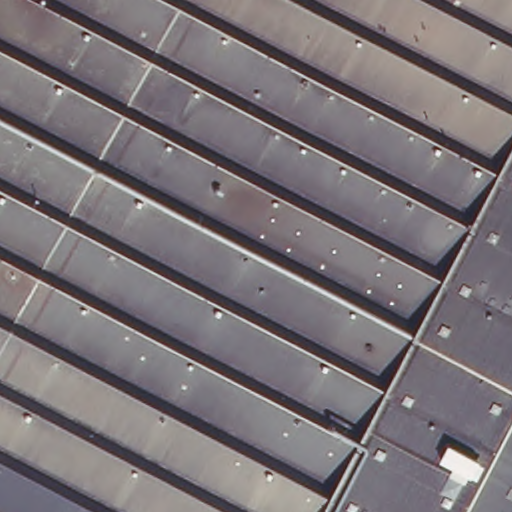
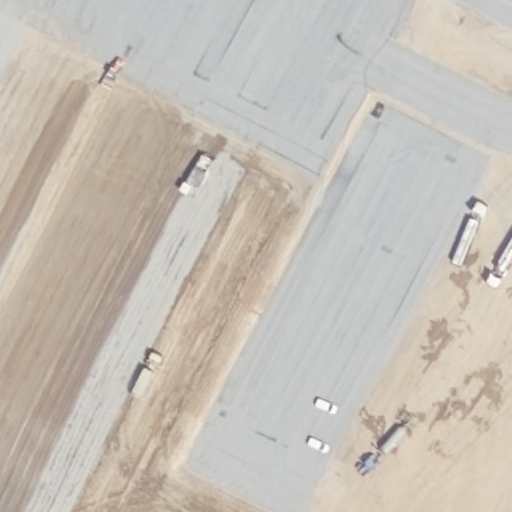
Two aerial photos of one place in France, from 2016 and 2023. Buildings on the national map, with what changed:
new [(157,512),(0,512),(0,0),(416,0),(157,512)]
demolished [(512,512),(0,512),(0,0),(512,0),(512,512)]
new [(512,26),(461,0),(512,0),(512,26)]

